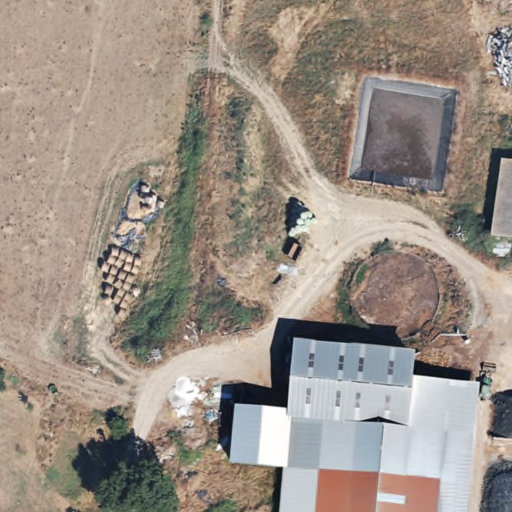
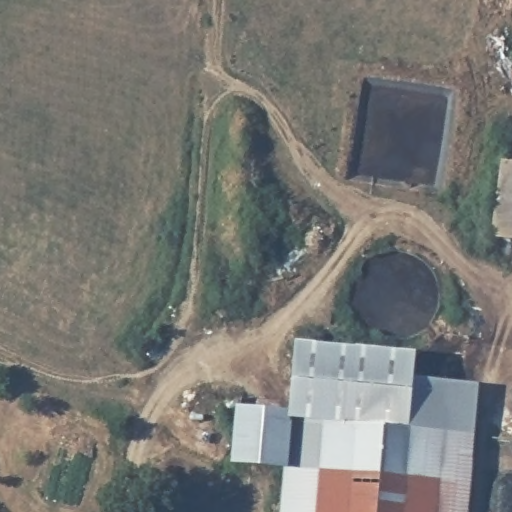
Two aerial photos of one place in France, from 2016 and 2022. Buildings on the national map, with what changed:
unchanged [(488,238),(500,160),(512,162),(512,241),(488,238)]
unchanged [(231,466),(235,419),(291,426),(295,349),(419,360),(421,389),(483,389),(468,512),(279,512),(282,471),(231,466)]

